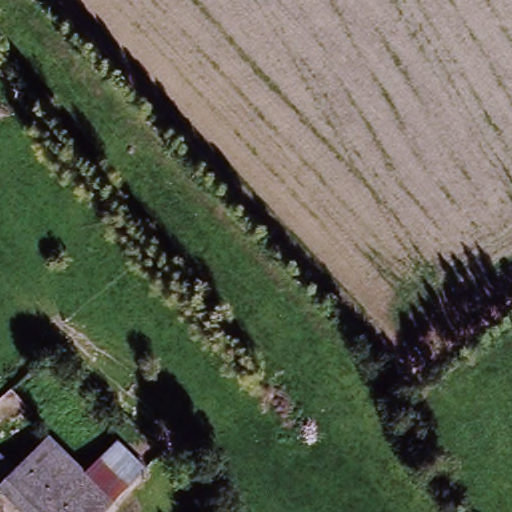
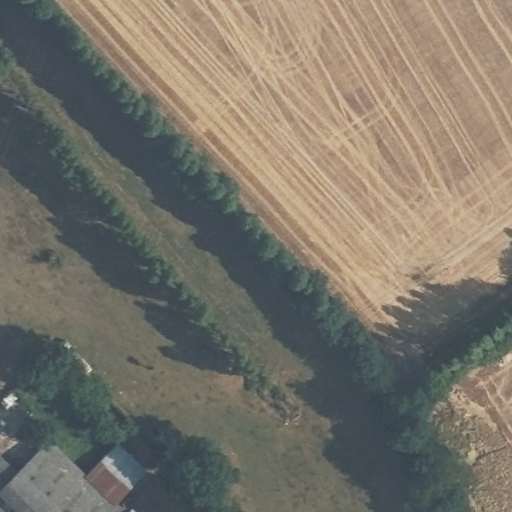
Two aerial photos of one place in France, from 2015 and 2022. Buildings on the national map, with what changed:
unchanged [(49,438),(85,473),(90,467),(109,450),(117,441),(147,471),(139,480),(121,498),(107,512),(17,512),(0,495),(0,455),(17,469),(40,447),(49,438)]

